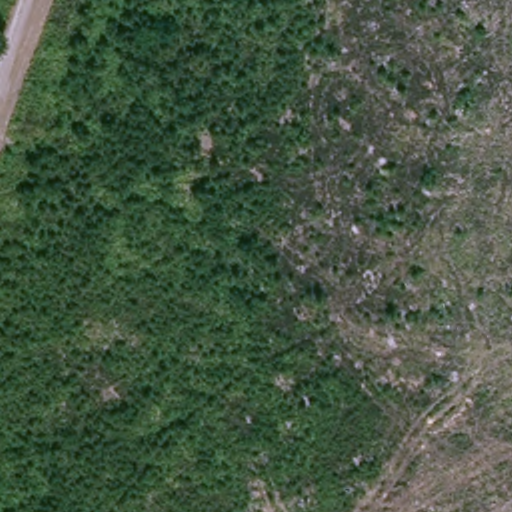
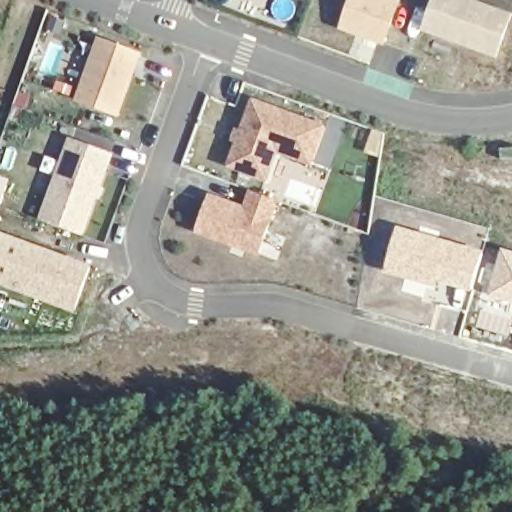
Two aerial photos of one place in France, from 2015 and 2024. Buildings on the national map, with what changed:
new [(341,29),(352,0),(397,0),(400,1),(385,46),(341,29)]
new [(433,0),(475,0),(512,13),(512,21),(498,59),(422,30),(433,0)]
new [(76,101),(99,38),(143,52),(120,118),(76,101)]
new [(276,154),(267,182),(229,168),(253,100),(326,127),(313,165),(276,154)]
new [(41,220),(70,138),(114,155),(85,236),(41,220)]
new [(209,195),(245,207),(251,192),(278,202),(260,255),(197,234),(209,195)]
new [(472,294),(438,284),(436,290),(383,275),(397,227),(483,252),(472,294)]
new [(0,286),(0,238),(2,233),(92,266),(76,313),(0,286)]
new [(502,250),(512,253),(512,304),(488,297),(502,250)]

